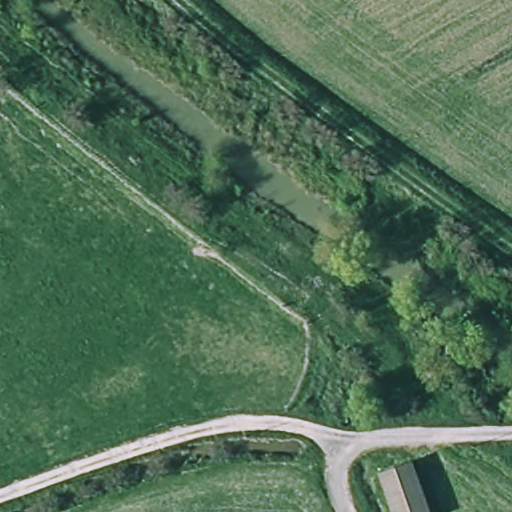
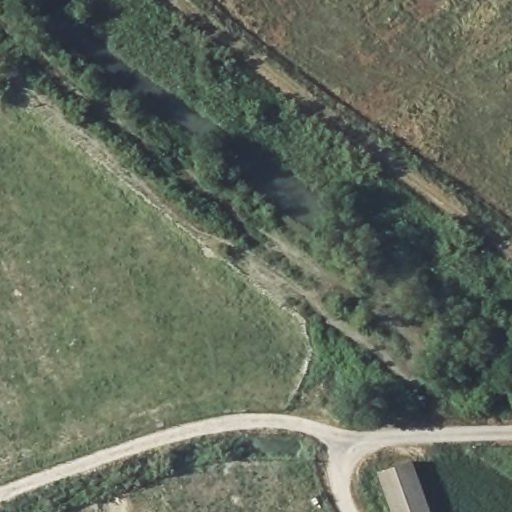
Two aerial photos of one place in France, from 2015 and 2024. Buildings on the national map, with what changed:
unchanged [(440,507),(428,512),(412,512),(393,468),(418,457),(440,507)]

